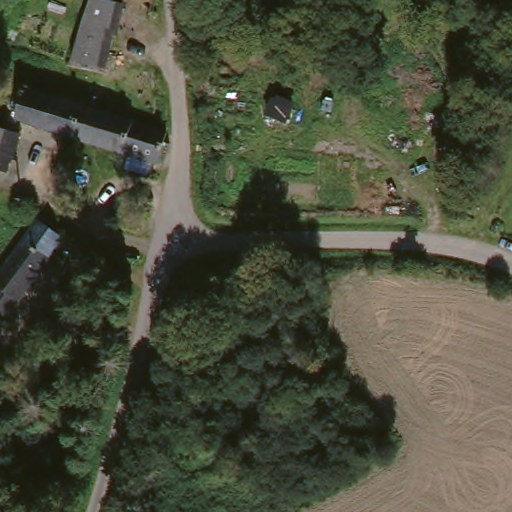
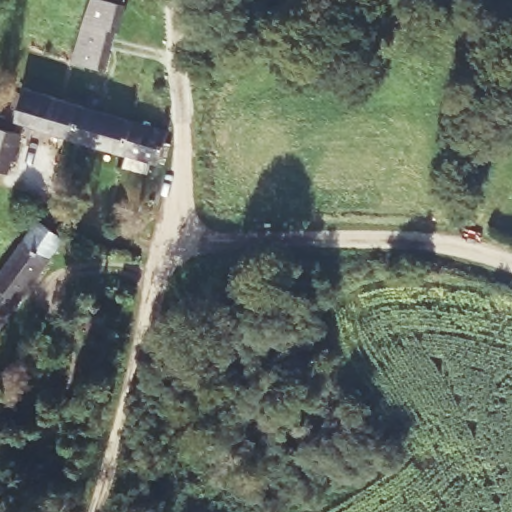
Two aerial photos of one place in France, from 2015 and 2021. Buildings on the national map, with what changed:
unchanged [(73,56),(90,0),(121,0),(105,65),(73,56)]
unchanged [(76,138),(14,118),(22,91),(56,102),(86,110),(76,138)]
unchanged [(161,159),(158,163),(76,138),(86,110),(129,124),(165,134),(161,159)]
unchanged [(0,173),(0,128),(19,134),(26,136),(21,162),(12,159),(8,175),(0,173)]
unchanged [(0,329),(0,270),(2,267),(38,218),(58,229),(64,235),(0,329)]

